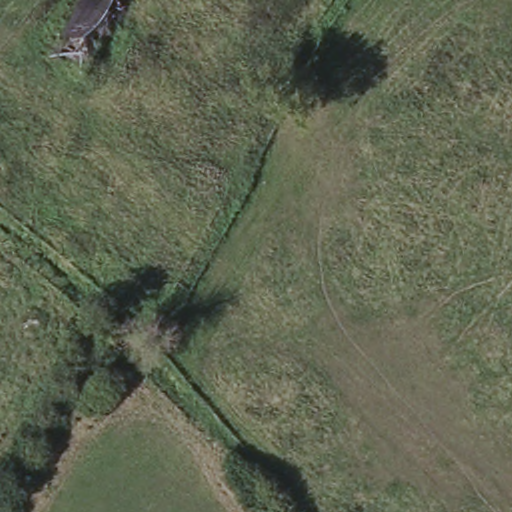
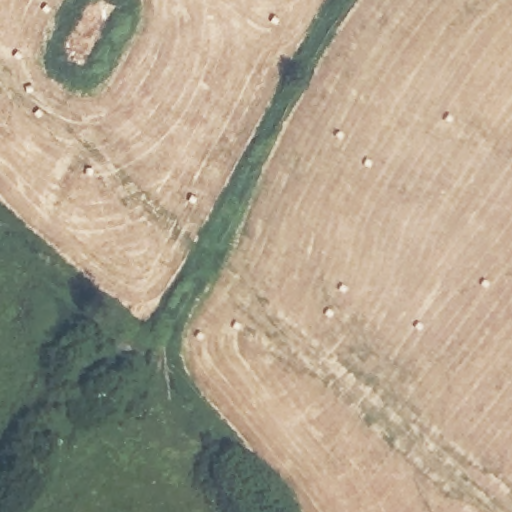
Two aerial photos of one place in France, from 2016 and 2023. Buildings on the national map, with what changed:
unchanged [(55,53),(86,0),(120,0),(130,6),(87,71),(55,53)]

